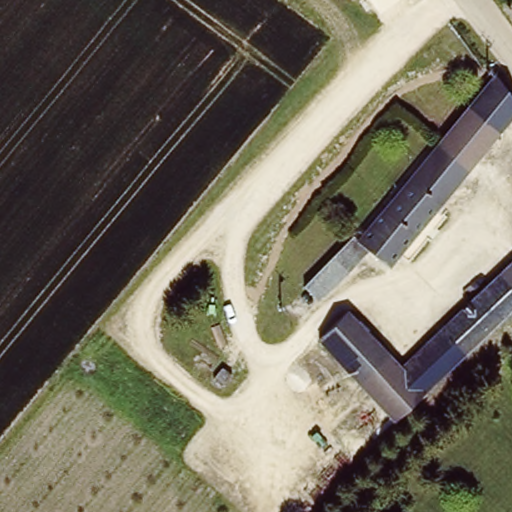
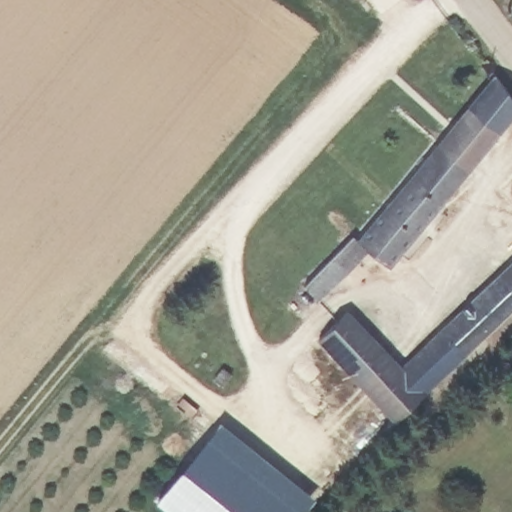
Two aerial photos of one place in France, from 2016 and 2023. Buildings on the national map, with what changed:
unchanged [(497,137),(467,110),(495,77),(512,101),(512,120),(497,137)]
unchanged [(300,289),(346,236),(355,243),(467,110),(497,137),(385,270),(364,252),(319,305),(303,292),(300,289)]
unchanged [(467,354),(445,332),(512,267),(512,311),(467,354)]
demolished [(311,315),(302,326),(285,308),(293,298),(311,315)]
unchanged [(405,371),(427,393),(400,420),(320,338),(346,312),(405,371)]
unchanged [(467,354),(427,393),(405,371),(445,332),(467,354)]
new [(157,501),(220,422),(313,497),(302,512),(171,512),(157,501)]

